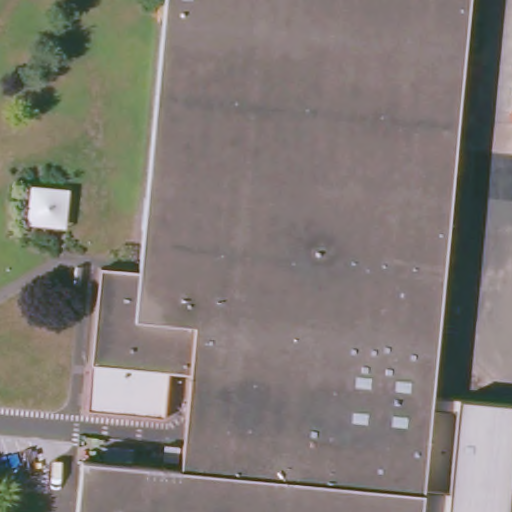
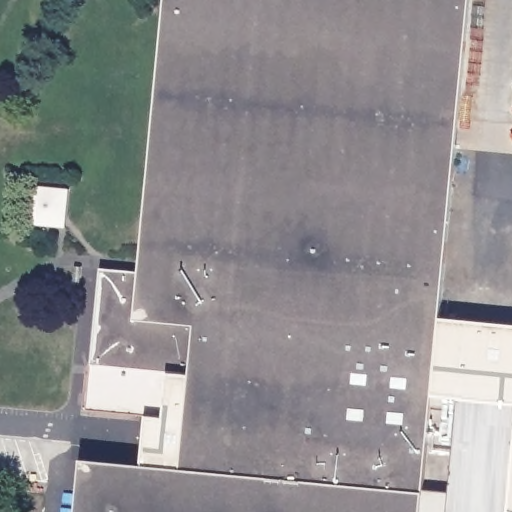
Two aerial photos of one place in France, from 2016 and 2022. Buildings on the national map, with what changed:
unchanged [(180,473),(188,378),(155,374),(150,418),(83,412),(97,269),(137,273),(163,0),(469,0),(421,512),(73,512),(77,463),(180,473)]
new [(439,317),(512,325),(512,404),(459,400),(432,398),(439,317)]
unchanged [(448,512),(459,400),(512,404),(512,444),(505,512),(448,512)]
new [(512,445),(512,511),(505,510),(512,445)]
new [(421,512),(423,488),(450,493),(448,512),(421,512)]

